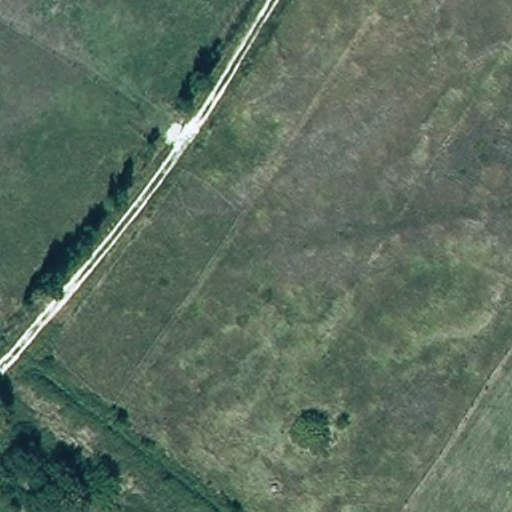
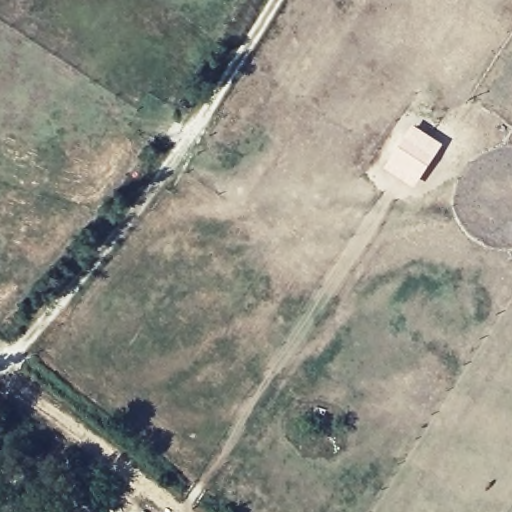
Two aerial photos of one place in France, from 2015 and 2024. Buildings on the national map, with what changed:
new [(404,135),(435,156),(416,187),(385,166),(404,135)]

